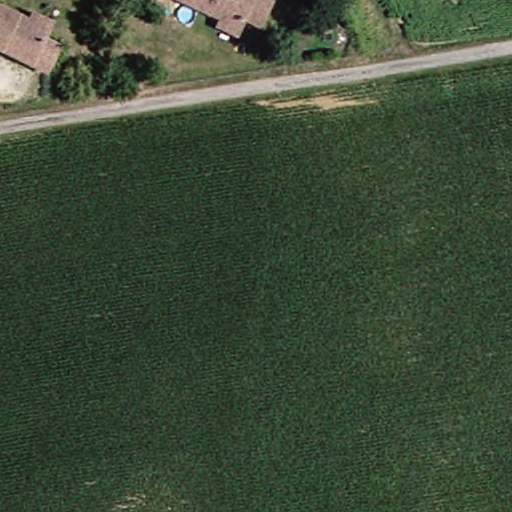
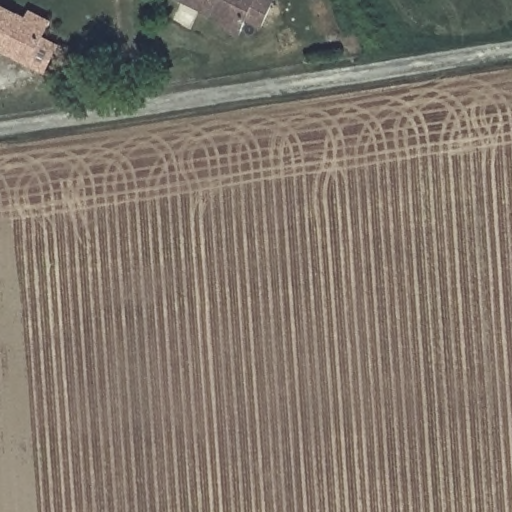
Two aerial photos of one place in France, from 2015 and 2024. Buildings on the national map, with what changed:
unchanged [(223,12),(196,0),(268,0),(261,16),(244,11),(241,20),(238,26),(220,19),(223,12)]
unchanged [(41,74),(0,50),(0,5),(25,20),(29,13),(49,24),(45,30),(39,40),(56,47),(41,74)]

